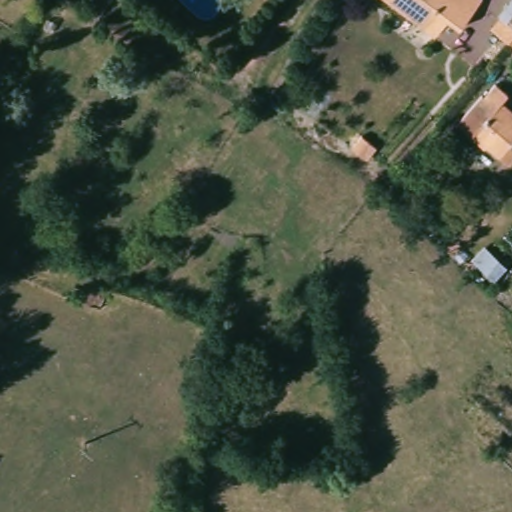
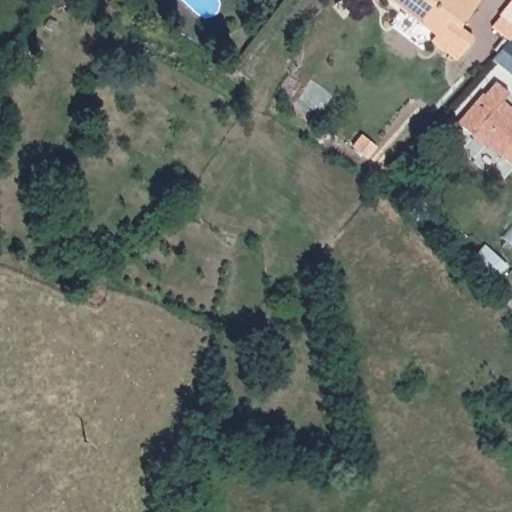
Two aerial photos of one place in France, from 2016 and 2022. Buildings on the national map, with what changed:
unchanged [(454,23),(449,29),(445,25),(436,36),(390,0),(482,0),(461,28),(454,23)]
unchanged [(500,15),(512,1),(512,25),(500,15)]
unchanged [(510,41),(512,38),(512,43),(510,41)]
unchanged [(491,147),(489,149),(462,126),(487,98),(490,100),(501,87),(512,97),(512,99),(508,104),(512,107),(512,165),(491,147)]
unchanged [(374,156),(363,147),(370,139),(380,148),(374,156)]

